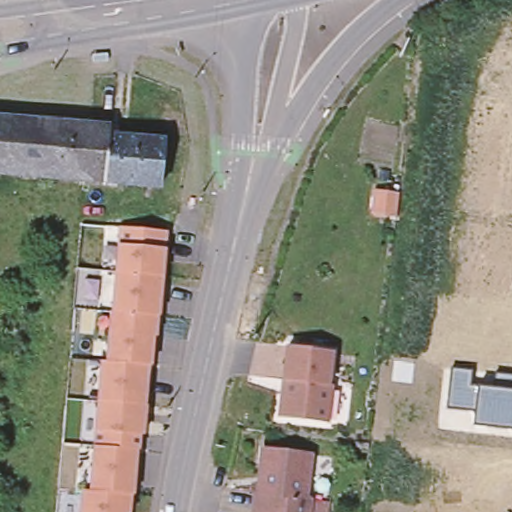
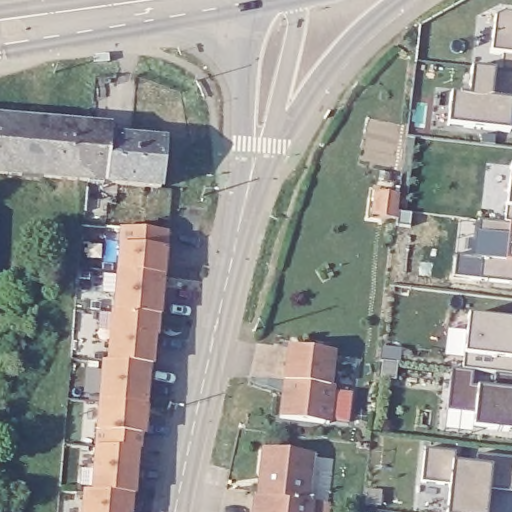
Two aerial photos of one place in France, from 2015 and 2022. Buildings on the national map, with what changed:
new [(450,95),(469,97),(472,69),(492,71),(500,71),(501,53),(490,51),(494,19),(502,15),(512,16),(512,117),(510,117),(509,130),(447,124),(450,95)]
unchanged [(0,115),(22,117),(17,173),(0,172),(0,115)]
unchanged [(85,123),(80,178),(17,173),(22,117),(85,123)]
unchanged [(106,125),(105,135),(102,180),(80,178),(85,123),(106,125)]
unchanged [(105,135),(160,140),(156,185),(102,180),(105,135)]
new [(480,279),(482,258),(474,257),(479,219),(504,222),(506,206),(510,166),(512,167),(512,284),(480,279)]
unchanged [(376,189),(403,192),(399,220),(372,216),(376,189)]
unchanged [(82,493),(90,492),(102,363),(106,362),(121,230),(169,232),(155,367),(149,366),(145,440),(140,440),(132,512),(81,512),(82,493)]
new [(464,366),(465,353),(469,316),(512,320),(512,371),(464,366)]
unchanged [(290,347),(335,353),(331,387),(335,387),(330,425),(281,419),(284,396),(286,382),(290,347)]
unchanged [(474,425),(475,409),(447,407),(450,369),(472,371),(470,385),(477,386),(495,388),(496,374),(512,376),(512,428),(474,425)]
new [(334,390),(351,394),(349,423),(330,419),(334,390)]
new [(450,481),(424,478),(427,448),(455,451),(455,462),(478,464),(479,454),(512,458),(512,489),(489,486),(487,512),(447,512),(450,481)]
unchanged [(317,457),(312,501),(317,501),(315,512),(259,512),(261,495),(263,495),(265,472),(268,451),(317,457)]

